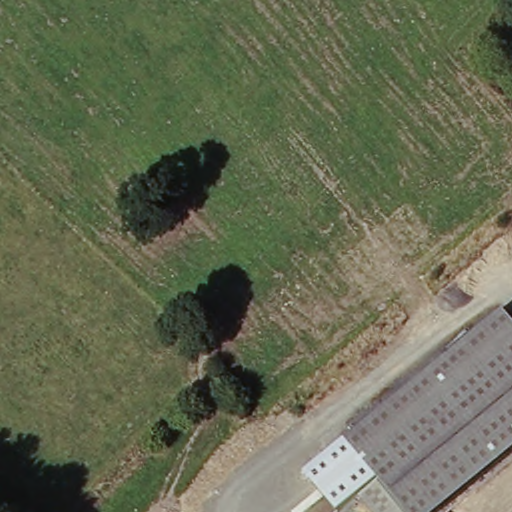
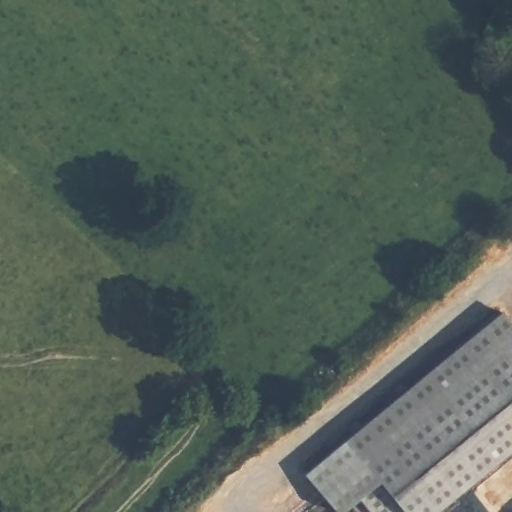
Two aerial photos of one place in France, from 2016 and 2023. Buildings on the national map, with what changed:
unchanged [(376,512),(332,457),(505,310),(512,320),(512,452),(439,512),(376,512)]

